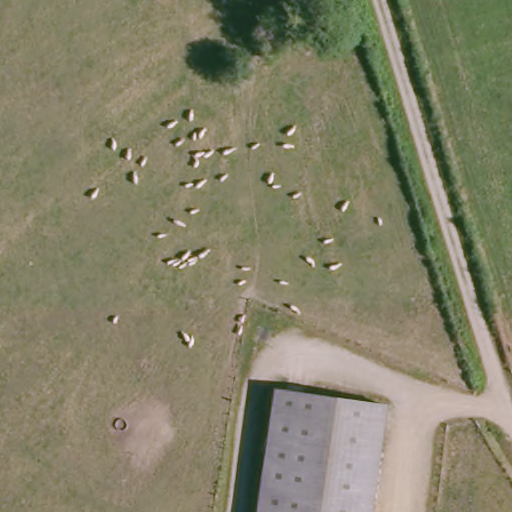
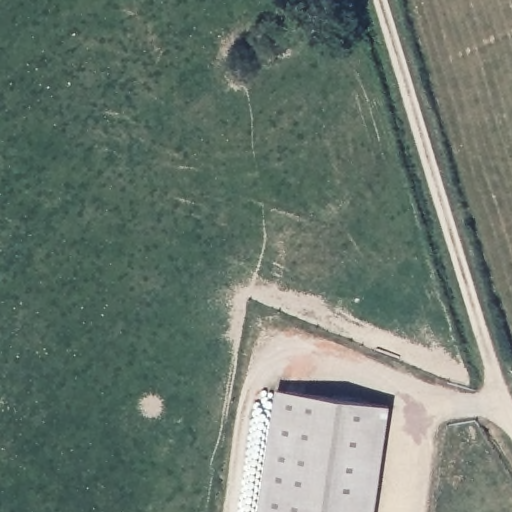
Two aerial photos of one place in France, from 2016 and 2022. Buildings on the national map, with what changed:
unchanged [(391,407),(375,512),(259,512),(277,389),(391,407)]

